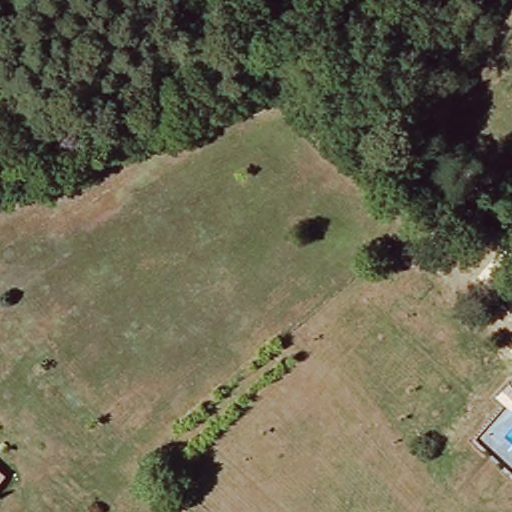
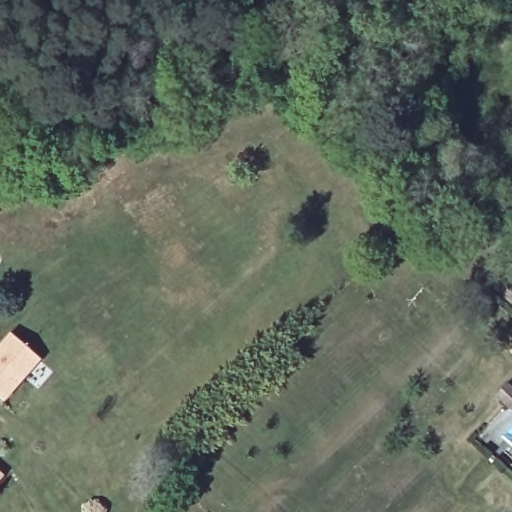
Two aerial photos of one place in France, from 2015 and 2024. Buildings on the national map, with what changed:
new [(43,361),(5,403),(0,399),(0,346),(11,333),(43,361)]
unchanged [(0,480),(0,471),(5,475),(0,480)]

